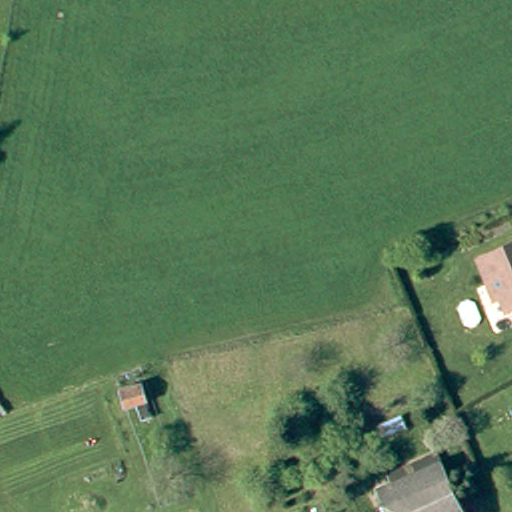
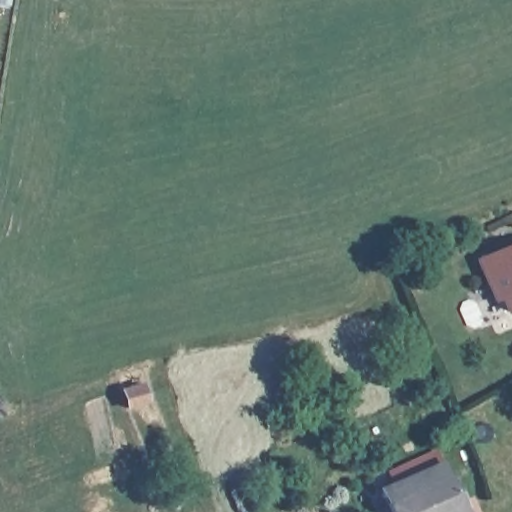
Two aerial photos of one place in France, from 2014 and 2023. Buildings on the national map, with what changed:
unchanged [(506,310),(499,294),(492,296),(477,258),(512,243),(512,308),(506,310)]
unchanged [(386,505),(380,492),(395,485),(389,475),(437,452),(465,512),(382,512),(380,507),(386,505)]

